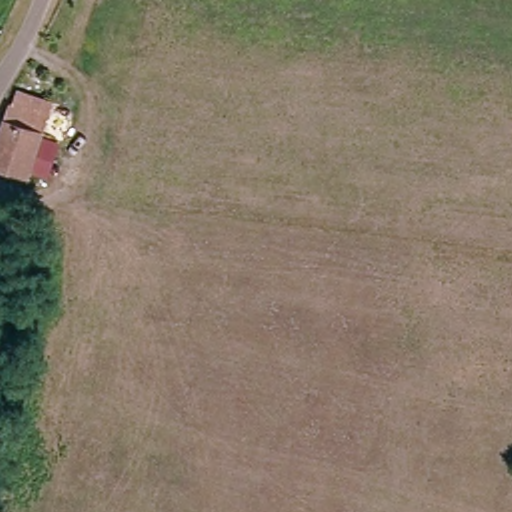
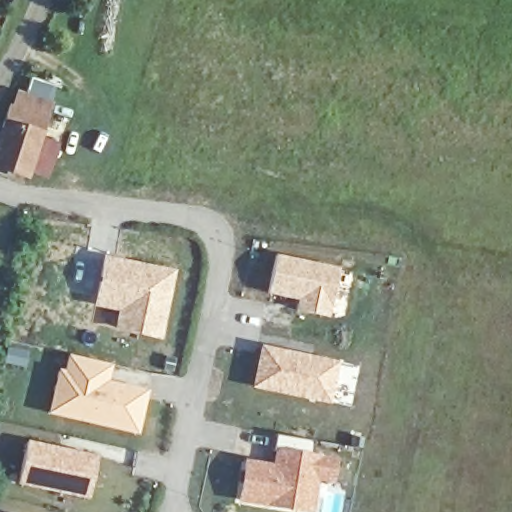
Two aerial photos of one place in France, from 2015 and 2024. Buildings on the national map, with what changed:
new [(43,137),(60,143),(48,180),(30,173),(27,180),(0,172),(0,131),(5,117),(15,90),(27,94),(32,79),(56,87),(53,107),(43,137)]
demolished [(0,180),(0,148),(12,113),(40,122),(33,143),(41,146),(27,189),(0,180)]
new [(273,253),(340,268),(326,318),(292,311),(295,301),(264,293),(273,253)]
new [(102,255),(175,270),(160,341),(112,330),(115,312),(91,306),(102,255)]
new [(258,344),(336,360),(327,404),(249,388),(258,344)]
new [(55,368),(60,369),(65,354),(110,365),(107,380),(147,390),(137,436),(45,415),(55,368)]
new [(270,463),(275,435),(311,441),(310,453),(334,457),(330,484),(317,482),(314,512),(292,512),(236,503),(242,460),(270,463)]
new [(25,440),(94,455),(84,497),(16,483),(25,440)]

